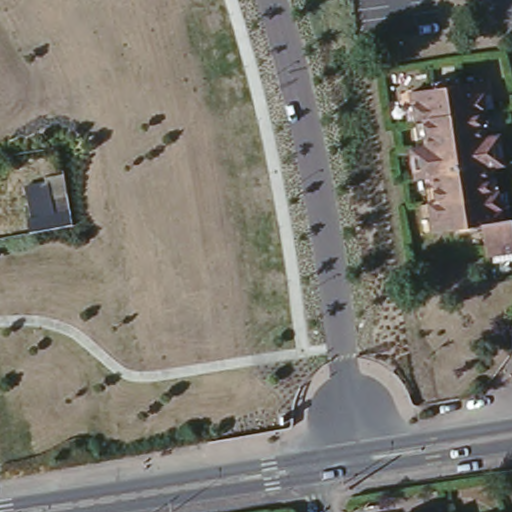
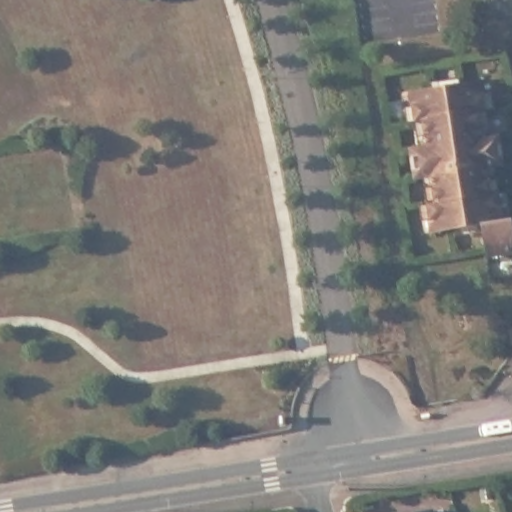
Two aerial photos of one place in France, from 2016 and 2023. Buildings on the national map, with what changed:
unchanged [(482,110),(474,112),(478,138),(486,136),(494,134),(498,164),(490,165),(482,166),(487,193),(494,191),(498,221),(507,219),(511,251),(482,255),(478,222),(427,231),(422,203),(430,201),(427,174),(418,176),(410,177),(407,148),(415,147),(422,146),(418,119),(411,121),(406,92),(477,81),(482,110)]
demolished [(73,227),(29,232),(21,184),(63,177),(73,227)]
unchanged [(429,512),(402,512),(428,506),(429,512)]

